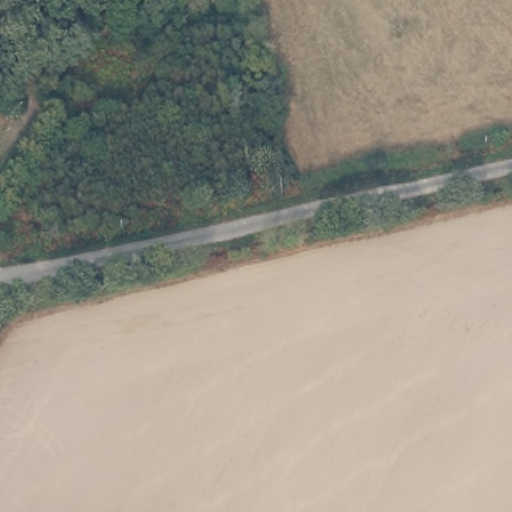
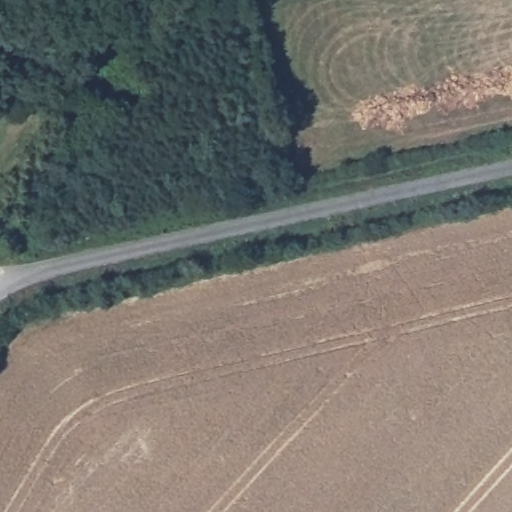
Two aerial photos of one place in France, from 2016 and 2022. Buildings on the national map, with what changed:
unchanged [(0,15),(9,29),(0,34),(0,15)]

